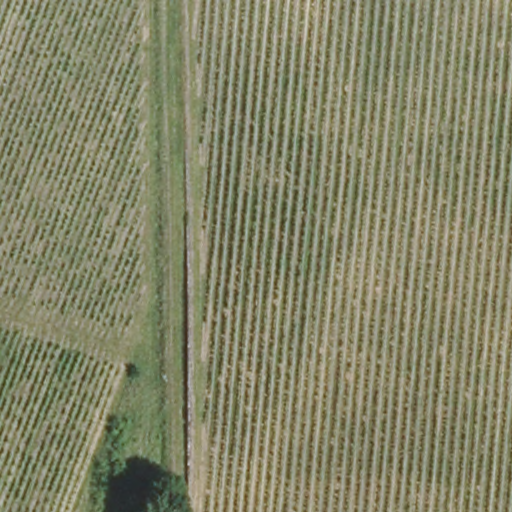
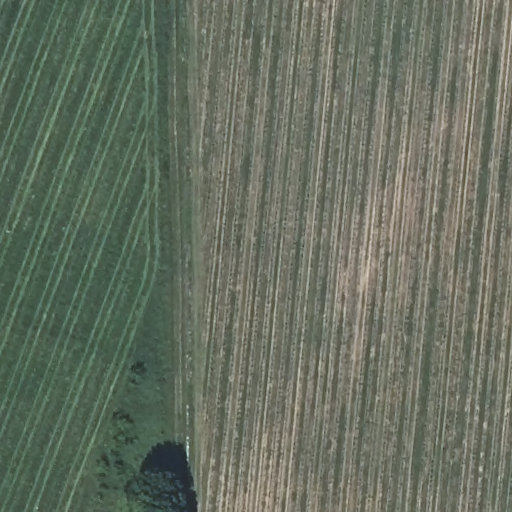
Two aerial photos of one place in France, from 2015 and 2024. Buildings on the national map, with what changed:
[]

